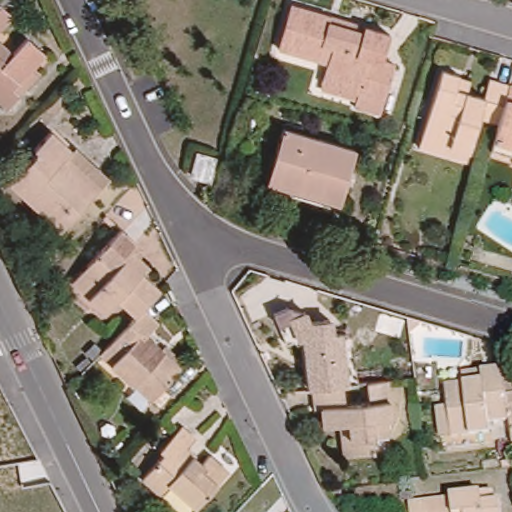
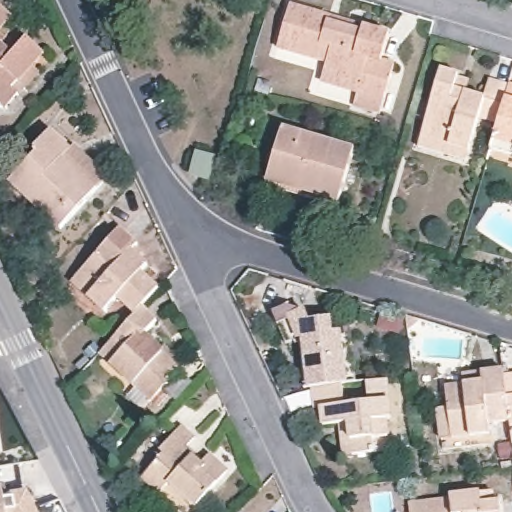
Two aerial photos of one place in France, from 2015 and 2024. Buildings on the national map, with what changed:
unchanged [(0,23),(0,0),(11,10),(0,23)]
unchanged [(387,54),(399,57),(384,109),(359,101),(363,88),(325,77),(331,59),(282,44),(294,0),(301,0),(334,10),(369,20),(393,27),(387,54)]
unchanged [(18,89),(5,102),(0,98),(0,34),(12,46),(26,31),(44,49),(33,61),(38,68),(19,90),(18,89)]
unchanged [(495,77),(512,83),(501,121),(483,116),(482,124),(461,117),(454,144),(426,135),(446,69),(463,74),(463,76),(474,80),(469,91),(489,97),(495,77)]
unchanged [(494,149),(501,122),(501,121),(512,83),(512,154),(494,149)]
unchanged [(454,144),(461,117),(482,124),(470,160),(423,145),(426,135),(454,144)]
unchanged [(9,183),(37,151),(34,148),(51,130),(53,126),(107,177),(101,184),(60,229),(9,183)]
unchanged [(287,126),(359,147),(343,201),(272,180),(287,126)]
unchanged [(195,149),(215,155),(208,180),(188,174),(195,149)]
unchanged [(106,207),(115,215),(110,219),(102,211),(106,207)]
unchanged [(134,310),(117,293),(105,307),(72,277),(121,221),(139,237),(133,244),(148,258),(142,266),(158,281),(143,299),(134,310)]
unchanged [(129,391),(136,382),(99,349),(134,310),(143,299),(158,313),(144,328),(161,343),(165,338),(185,356),(180,361),(150,395),(142,403),(129,391)]
unchanged [(305,362),(301,324),(335,320),(338,332),(347,331),(356,330),(363,382),(353,383),(346,384),(316,387),(314,387),(308,388),(305,362)]
unchanged [(441,408),(452,406),(449,385),(468,382),(467,372),(509,367),(510,374),(512,396),(512,422),(493,424),(495,434),(456,438),(456,436),(445,437),(441,408)]
unchanged [(510,374),(512,374),(512,396),(510,374)]
unchanged [(344,423),(326,425),(325,407),(319,407),(316,387),(346,384),(349,402),(372,401),(370,381),(394,379),(398,417),(393,418),(394,435),(376,437),(377,452),(356,455),(347,456),(344,423)]
unchanged [(186,425),(200,436),(191,445),(200,452),(198,454),(206,462),(214,453),(233,470),(199,506),(175,482),(164,492),(146,477),(169,452),(165,448),(186,425)]
new [(24,485),(37,512),(12,512),(10,508),(0,510),(0,487),(1,489),(24,485)]
unchanged [(446,498),(445,495),(475,490),(475,491),(488,490),(490,500),(495,500),(496,512),(405,512),(405,502),(446,498)]

